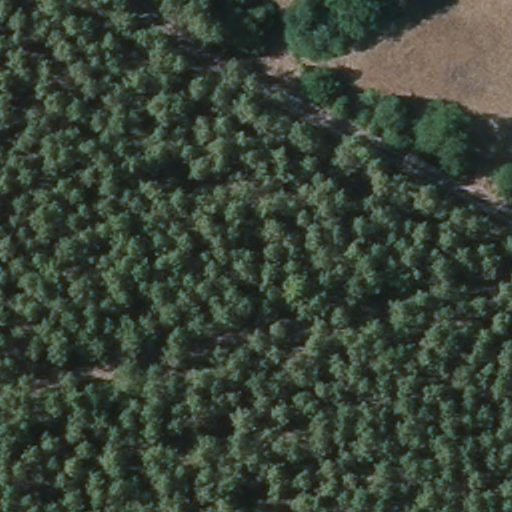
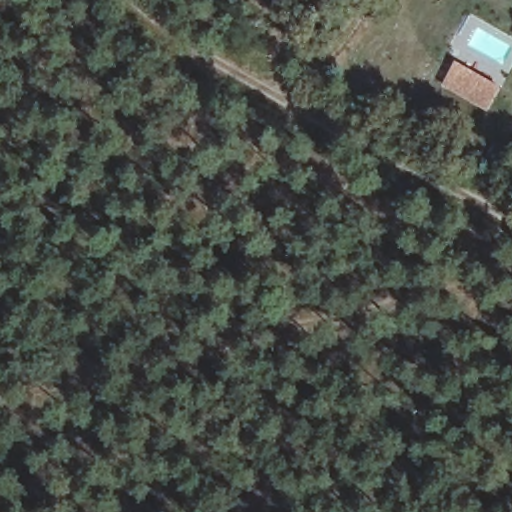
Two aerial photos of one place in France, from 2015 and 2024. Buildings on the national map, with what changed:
new [(503,86),(489,111),(443,85),(458,60),(503,86)]

